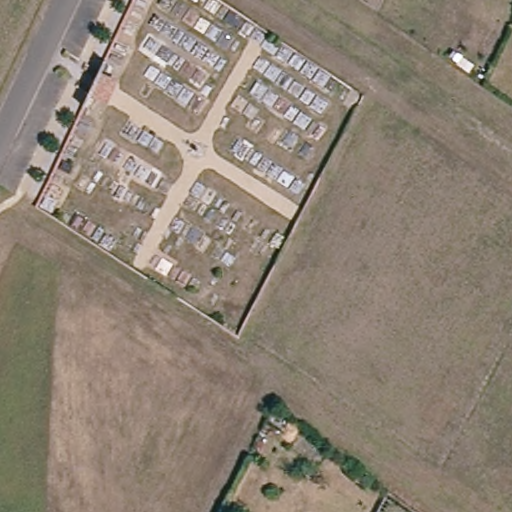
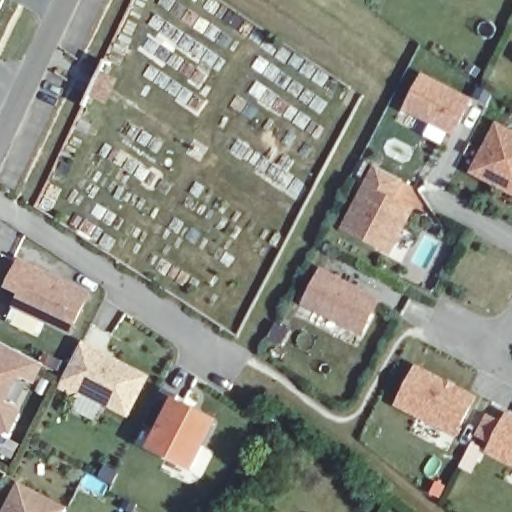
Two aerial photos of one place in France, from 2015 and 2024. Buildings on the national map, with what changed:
new [(476,100),(457,136),(404,111),(423,73),(476,100)]
new [(512,130),(512,196),(470,175),(497,122),(512,130)]
new [(404,184),(396,200),(416,209),(392,256),(342,232),(374,168),(404,184)]
new [(72,336),(14,309),(20,294),(6,288),(18,259),(93,293),(72,336)]
new [(365,337),(302,305),(321,268),(383,299),(365,337)]
new [(130,419),(82,395),(80,399),(61,390),(84,343),(152,376),(130,419)]
new [(0,344),(46,367),(36,386),(21,378),(8,404),(24,411),(11,436),(0,430),(0,344)]
new [(396,408),(418,365),(480,398),(457,440),(396,408)]
new [(180,398),(179,400),(220,421),(193,474),(146,451),(157,430),(146,425),(164,389),(180,398)]
new [(487,455),(508,413),(512,415),(512,467),(487,455)]
new [(68,512),(2,512),(18,482),(70,508),(68,512)]

